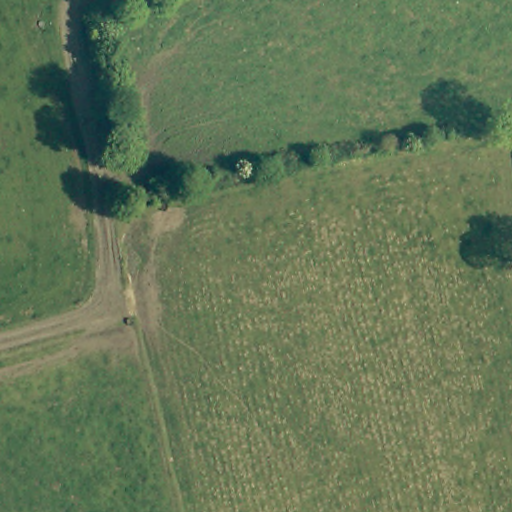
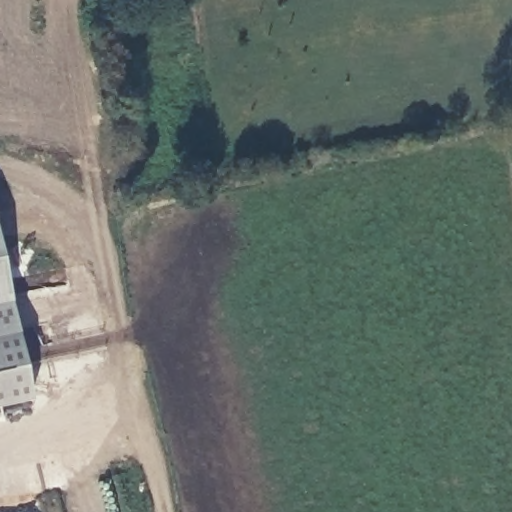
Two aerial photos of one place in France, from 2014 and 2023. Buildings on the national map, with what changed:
new [(33,400),(0,407),(0,264),(33,400)]

